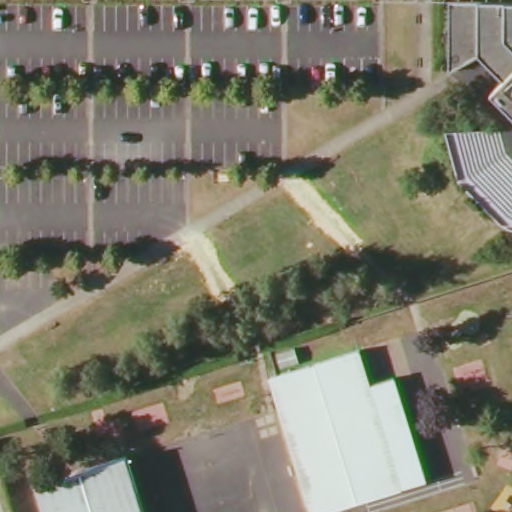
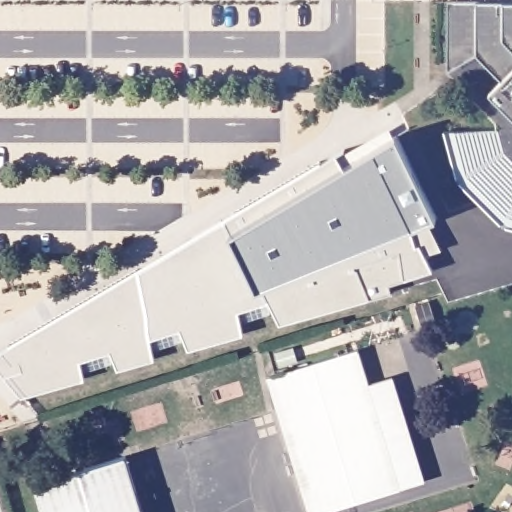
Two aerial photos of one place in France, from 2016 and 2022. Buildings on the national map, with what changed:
unchanged [(510,118),(486,93),(497,81),(474,55),(444,71),(445,2),(512,2),(512,116),(510,118)]
unchanged [(504,156),(512,164),(512,231),(504,229),(456,184),(444,135),(452,134),(499,133),(504,156)]
new [(271,211),(398,135),(438,217),(294,272),(280,280),(252,223),(271,211)]
new [(430,230),(441,254),(425,259),(432,275),(390,289),(391,298),(279,328),(269,302),(261,287),(280,280),(294,272),(438,217),(430,230)]
new [(261,287),(269,302),(237,312),(243,334),(189,350),(180,329),(151,339),(155,360),(117,370),(111,353),(82,361),(85,379),(22,397),(0,369),(0,354),(224,220),(232,234),(252,223),(280,280),(261,287)]
unchanged [(266,376),(359,349),(370,386),(399,490),(399,491),(327,512),(307,512),(266,376)]
unchanged [(370,386),(391,381),(421,484),(399,490),(370,386)]
new [(0,433),(0,391),(11,430),(0,433)]
unchanged [(32,485),(124,459),(140,512),(41,512),(32,485)]

